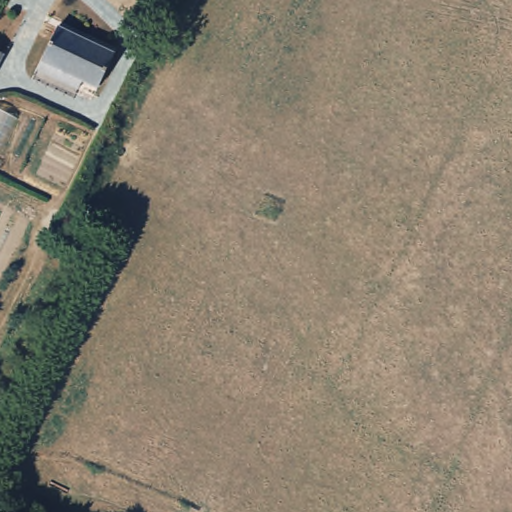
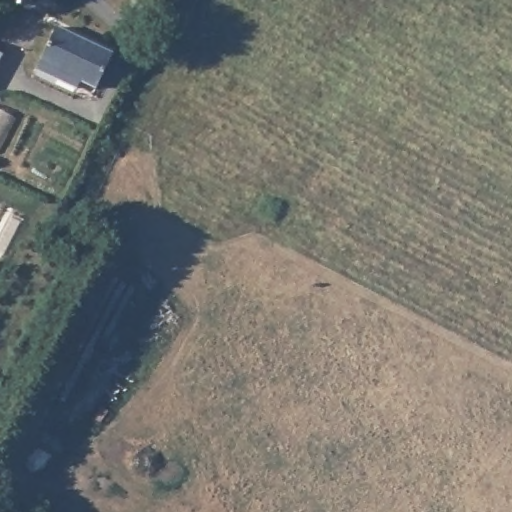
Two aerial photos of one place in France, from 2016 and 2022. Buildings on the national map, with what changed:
unchanged [(61,81),(39,75),(50,30),(110,46),(102,82),(85,79),(83,87),(61,81)]

